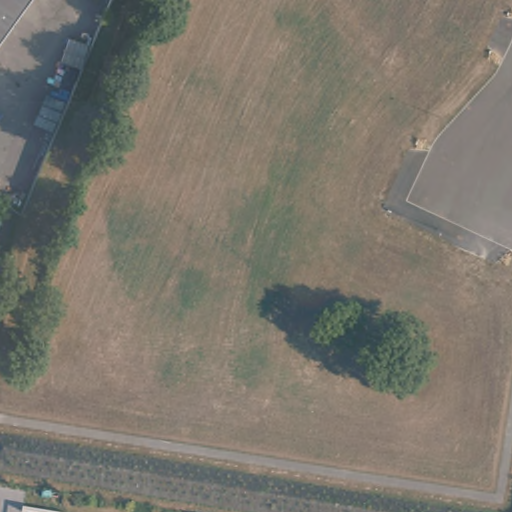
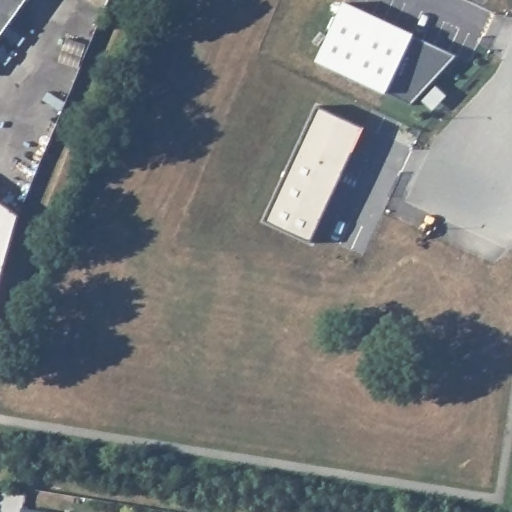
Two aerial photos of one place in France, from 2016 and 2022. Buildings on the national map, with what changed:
unchanged [(0,0),(29,0),(0,40),(0,0)]
new [(413,34),(457,56),(411,105),(386,94),(316,61),(345,1),(413,34)]
new [(318,105),(365,126),(312,242),(264,220),(318,105)]
new [(0,279),(0,203),(17,215),(0,279)]
unchanged [(21,508),(51,512),(20,512),(21,508)]

